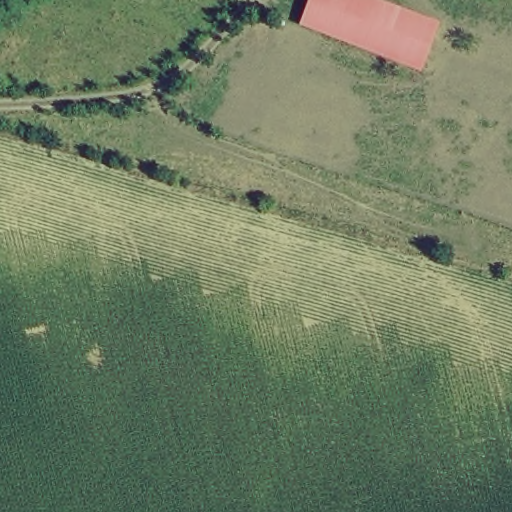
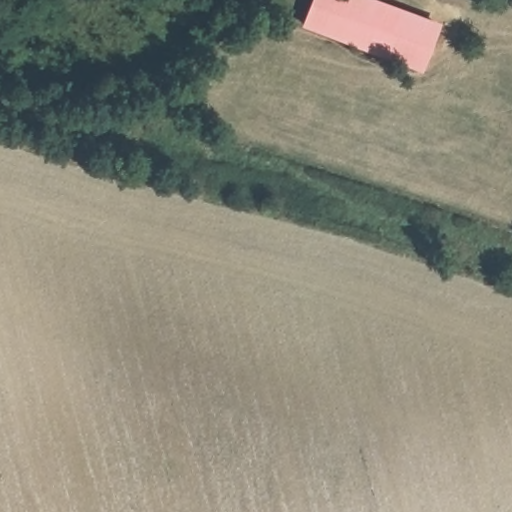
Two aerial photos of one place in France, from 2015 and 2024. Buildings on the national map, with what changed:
unchanged [(423,76),(299,34),(312,0),(372,0),(440,25),(423,76)]

